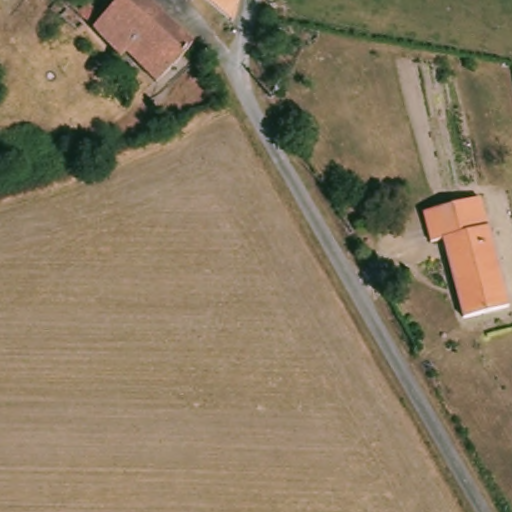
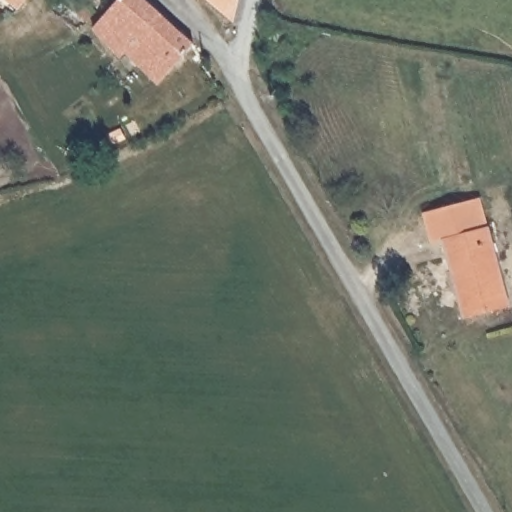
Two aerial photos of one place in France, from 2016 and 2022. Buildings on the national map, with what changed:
unchanged [(147,0),(195,45),(175,67),(162,76),(155,81),(126,54),(122,56),(98,27),(124,0),(147,0)]
unchanged [(209,0),(238,0),(233,22),(209,0)]
unchanged [(67,13),(78,2),(94,18),(84,27),(67,13)]
unchanged [(512,293),(512,303),(470,313),(452,237),(438,241),(433,223),(430,211),(485,195),(489,210),(512,293)]

